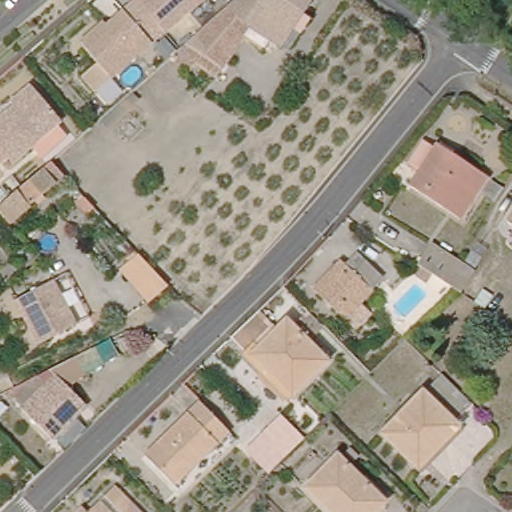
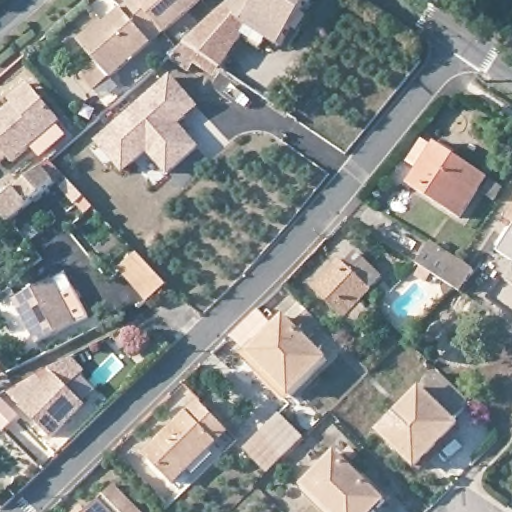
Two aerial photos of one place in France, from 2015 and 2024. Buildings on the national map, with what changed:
unchanged [(103,60),(83,39),(105,19),(108,22),(114,16),(124,8),(133,0),(139,0),(158,20),(146,30),(154,40),(100,85),(88,72),(103,60)]
unchanged [(158,20),(139,0),(201,0),(166,30),(158,20)]
unchanged [(314,0),(284,55),(248,39),(213,80),(170,54),(230,0),(314,0)]
unchanged [(504,27),(512,16),(512,33),(504,27)]
new [(196,149),(166,175),(146,152),(122,173),(95,143),(171,77),(196,107),(176,125),(181,131),(196,149)]
unchanged [(8,105),(28,90),(31,94),(58,125),(10,164),(5,159),(0,163),(0,119),(12,110),(8,105)]
unchanged [(460,214),(412,181),(440,142),(488,175),(460,214)]
unchanged [(69,179),(16,224),(5,210),(57,165),(69,179)]
unchanged [(470,271),(454,291),(453,290),(438,280),(428,272),(422,280),(414,275),(419,267),(415,264),(428,247),(450,262),(453,258),(470,271)]
unchanged [(354,318),(343,306),(318,280),(346,255),(349,259),(363,248),(384,271),(355,295),(366,307),(354,318)]
unchanged [(145,307),(115,271),(139,251),(177,290),(145,307)]
unchanged [(56,283),(80,326),(43,345),(19,301),(56,283)]
unchanged [(313,321),(329,337),(313,351),(329,369),(291,402),(253,361),(235,342),(259,320),(277,339),(291,327),(296,335),(313,321)]
unchanged [(76,453),(63,439),(60,440),(13,393),(21,390),(41,380),(56,372),(74,364),(78,361),(95,378),(78,395),(93,410),(80,422),(93,436),(76,453)]
unchanged [(418,462),(384,427),(424,392),(458,427),(418,462)]
new [(0,428),(0,399),(1,398),(21,417),(6,433),(0,428)]
unchanged [(173,483),(146,453),(199,406),(227,436),(173,483)]
unchanged [(249,448),(275,427),(297,451),(272,473),(249,448)]
unchanged [(370,512),(338,512),(309,483),(338,456),(381,502),(370,512)]
unchanged [(106,501),(116,492),(133,512),(116,512),(106,501)]
unchanged [(96,510),(99,512),(94,512),(96,510)]

